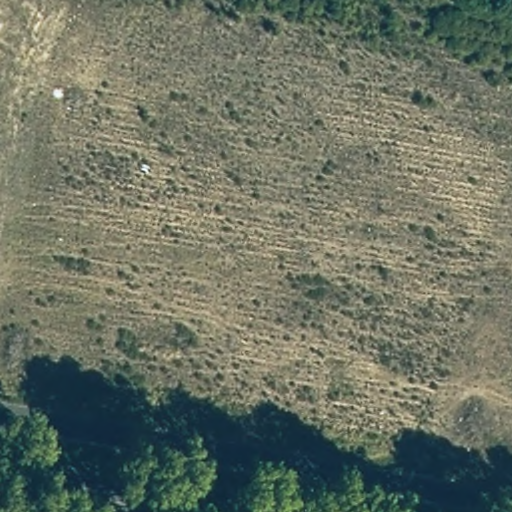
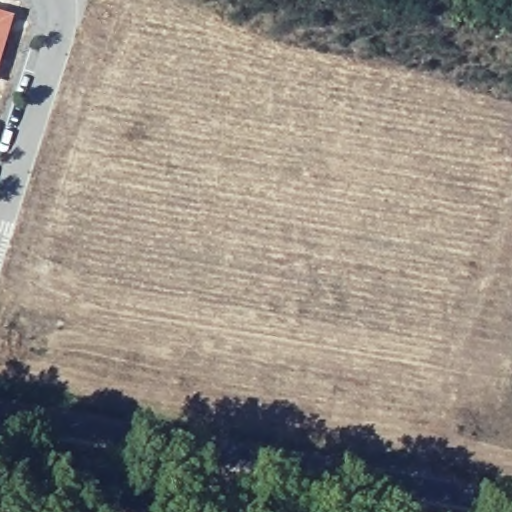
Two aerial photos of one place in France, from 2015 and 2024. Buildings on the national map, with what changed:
new [(14,16),(0,61),(0,12),(14,16)]

